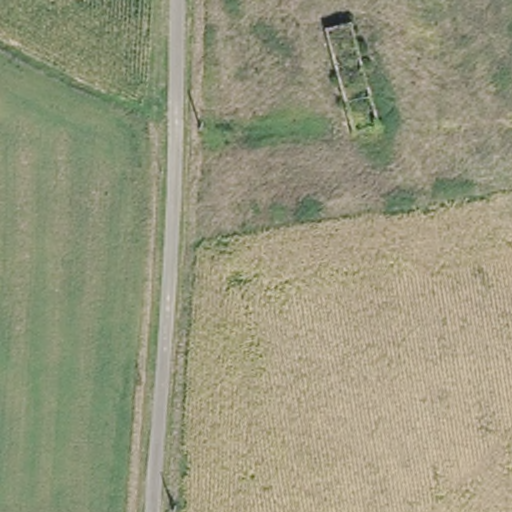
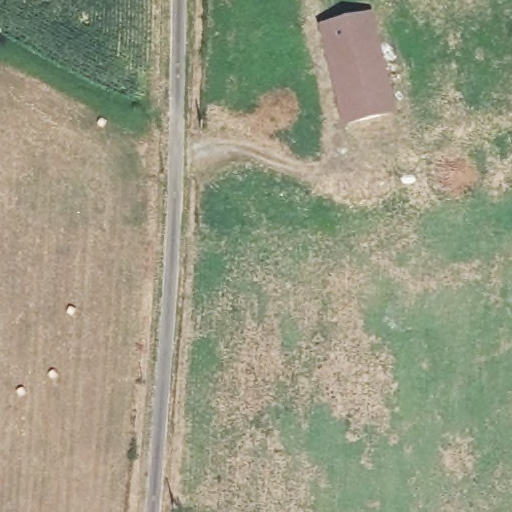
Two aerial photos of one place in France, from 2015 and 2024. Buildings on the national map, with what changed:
new [(369,15),(394,112),(345,125),(320,28),(369,15)]

